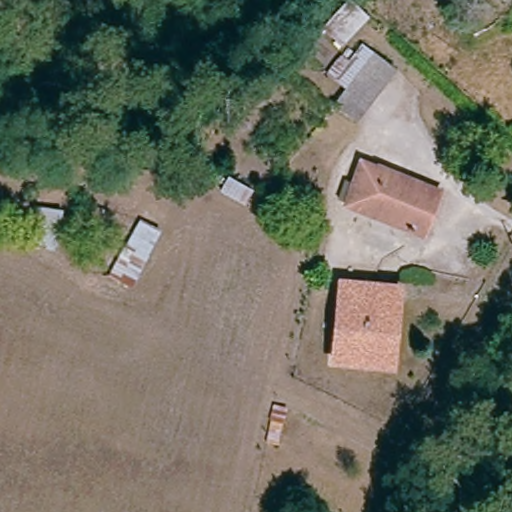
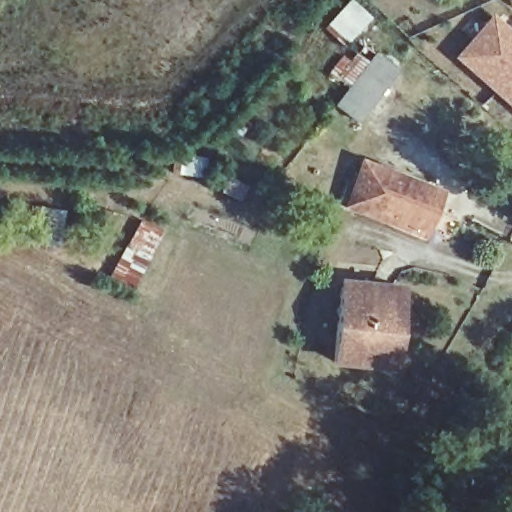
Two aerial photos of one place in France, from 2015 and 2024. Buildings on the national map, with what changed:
unchanged [(350,0),(351,0),(370,19),(343,47),(323,29),(350,0)]
new [(491,13),(512,30),(512,109),(453,57),(491,13)]
unchanged [(329,75),(342,58),(350,64),(363,47),(373,55),(396,72),(358,122),(336,106),(348,90),(329,75)]
unchanged [(441,194),(423,238),(346,207),(361,163),(441,194)]
unchanged [(209,186),(217,172),(253,192),(245,207),(209,186)]
unchanged [(140,221),(162,232),(131,289),(111,277),(140,221)]
unchanged [(401,292),(393,370),(333,364),(341,287),(401,292)]

